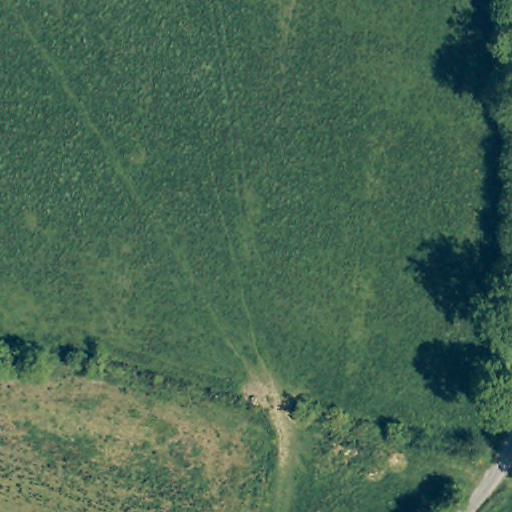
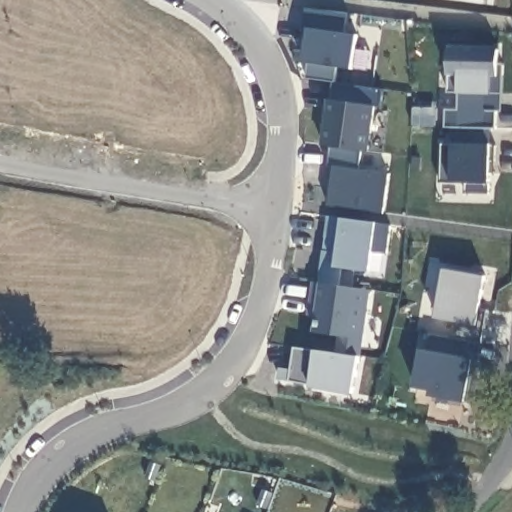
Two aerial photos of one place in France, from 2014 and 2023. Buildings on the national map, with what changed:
new [(347,33),(358,34),(354,69),(337,66),(335,81),(308,78),(311,64),(303,62),(306,29),(305,7),(348,13),(347,33)]
new [(499,63),(505,63),(503,110),(497,111),(497,128),(446,127),(446,109),(460,110),(460,93),(450,92),(448,75),(449,44),(500,46),(499,63)]
new [(383,109),(376,109),(370,153),(362,151),(360,169),(391,173),(386,213),(328,204),(334,164),(328,163),(331,146),(322,145),(328,99),(333,99),(335,81),(388,88),(383,109)]
new [(455,141),(491,143),(500,144),(497,173),(492,173),(492,182),(492,193),(468,193),(469,182),(452,181),(443,180),(444,144),(455,141)]
new [(387,254),(376,253),(373,272),(348,268),(345,287),(372,289),(360,356),(354,392),(310,386),(279,379),(280,367),(294,369),(297,346),(315,348),(338,352),(342,334),(313,332),(316,314),(307,313),(312,280),(320,282),(330,215),(345,217),(377,222),(391,224),(387,254)]
new [(476,387),(470,385),(467,402),(432,396),(431,391),(415,389),(420,349),(431,351),(430,333),(457,338),(461,321),(436,316),(444,267),(487,273),(498,274),(476,387)]

